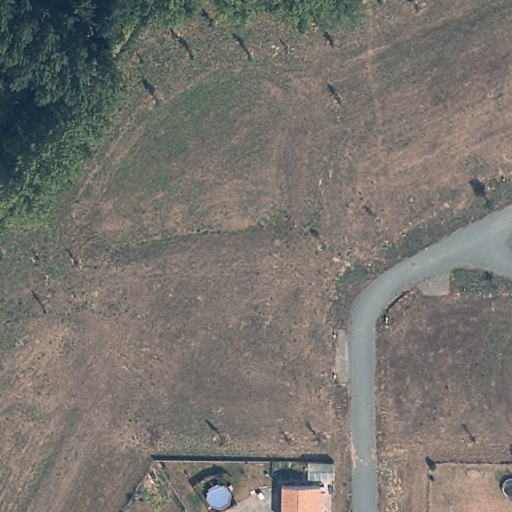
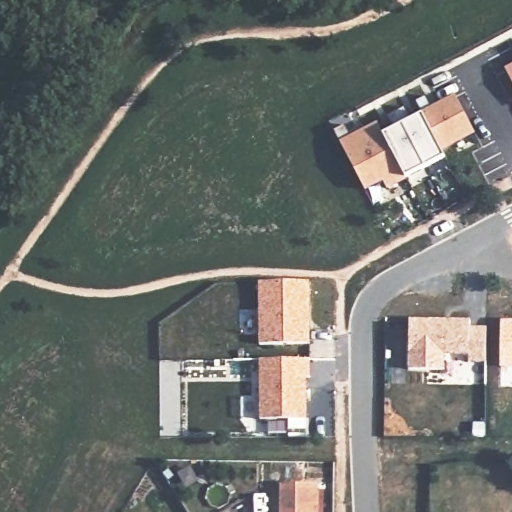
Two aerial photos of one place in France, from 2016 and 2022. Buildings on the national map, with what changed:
new [(512,85),(504,70),(512,66),(512,85)]
new [(351,136),(377,122),(383,134),(392,129),(387,118),(406,109),(411,119),(456,95),(476,135),(442,150),(447,159),(406,179),(408,181),(388,192),(383,184),(366,193),(340,142),(351,136)]
new [(258,281),(308,281),(309,344),(259,345),(258,281)]
new [(308,359),(309,420),(260,420),(258,360),(308,359)]
unchanged [(318,485),(318,512),(280,512),(281,485),(318,485)]

